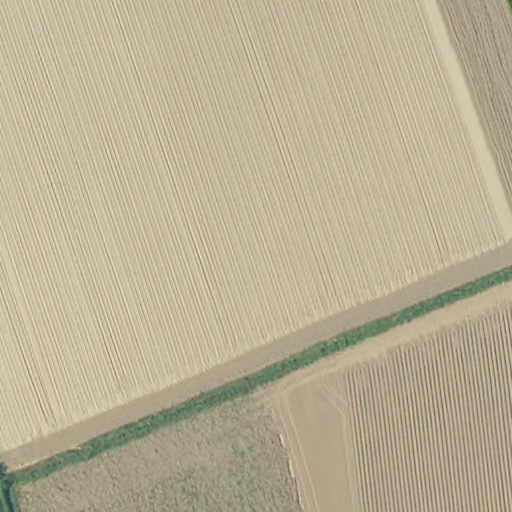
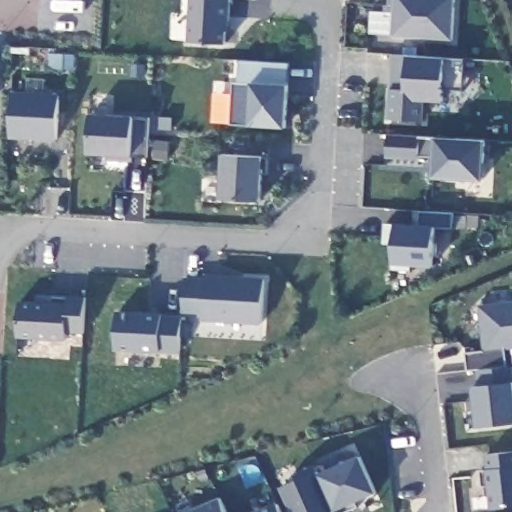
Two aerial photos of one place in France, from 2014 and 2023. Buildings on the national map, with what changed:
new [(226,30),(225,44),(187,42),(190,0),(230,0),(229,30),(226,30)]
new [(390,37),(393,0),(454,0),(451,40),(390,37)]
new [(463,91),(443,89),(442,100),(423,98),(422,121),(390,118),(393,54),(465,58),(463,91)]
new [(288,61),(285,127),(231,123),(234,83),(237,83),(239,61),(288,61)]
new [(60,93),(56,140),(9,138),(10,91),(60,93)]
new [(149,118),(146,156),(131,156),(131,163),(105,160),(106,156),(87,155),(90,113),(149,118)]
new [(483,181),(432,176),(433,156),(418,156),(418,159),(386,157),(387,135),(418,137),(436,137),(485,141),(483,181)]
new [(263,156),(260,201),(218,198),(221,153),(263,156)]
new [(455,212),(453,228),(435,228),(432,266),(411,265),(410,271),(391,270),(393,244),(383,244),(384,223),(413,224),(413,210),(455,212)]
unchanged [(180,314),(184,276),(203,278),(204,274),(265,278),(261,325),(202,321),(202,317),(182,316),(180,354),(115,350),(116,310),(180,314)]
new [(37,301),(37,295),(85,296),(82,335),(66,335),(66,339),(17,337),(19,300),(37,301)]
new [(476,427),(471,386),(479,386),(477,369),(467,370),(465,353),(483,350),(478,305),(512,301),(512,348),(503,349),(506,366),(510,366),(512,372),(512,423),(476,427)]
new [(489,509),(486,485),(481,485),(478,470),(486,469),(484,454),(512,451),(512,506),(489,509)]
new [(375,493),(357,501),(357,506),(341,512),(290,512),(280,489),(319,473),(360,456),(375,493)]
new [(219,498),(225,512),(184,512),(219,498)]
new [(280,512),(252,512),(275,502),(280,512)]

